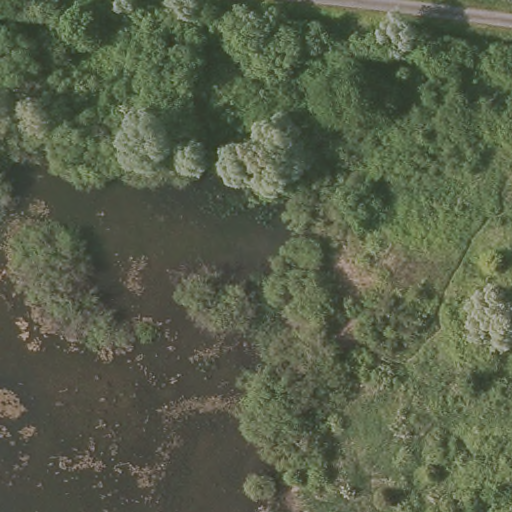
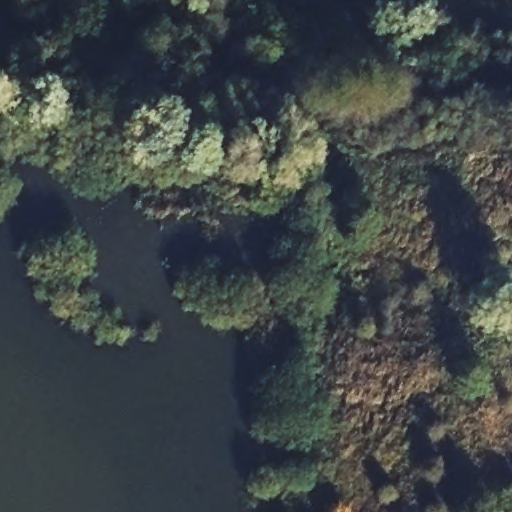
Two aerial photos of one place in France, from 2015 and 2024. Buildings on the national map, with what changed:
[]

